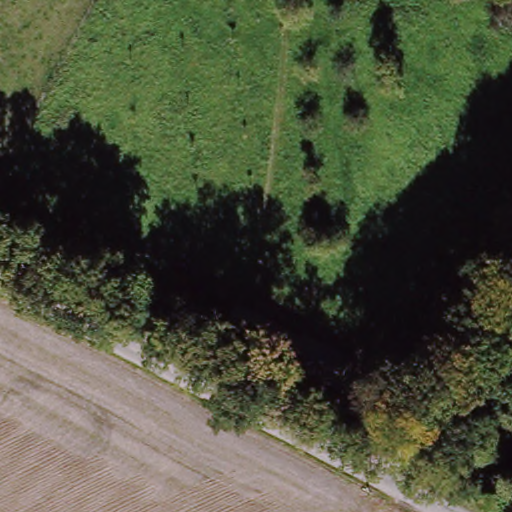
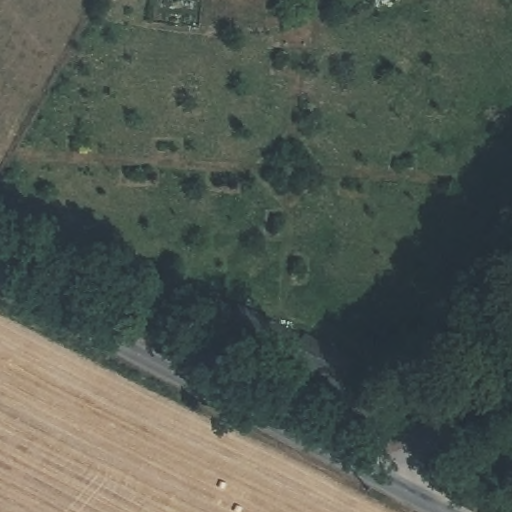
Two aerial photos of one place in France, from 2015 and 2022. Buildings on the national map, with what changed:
unchanged [(334,382),(287,358),(289,355),(227,322),(236,302),(299,333),(301,330),(349,355),(334,382)]

